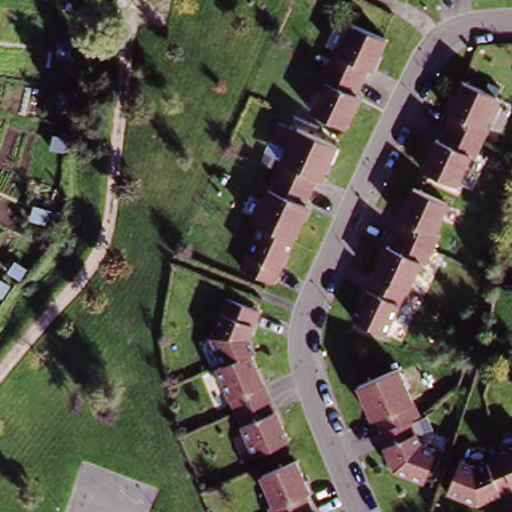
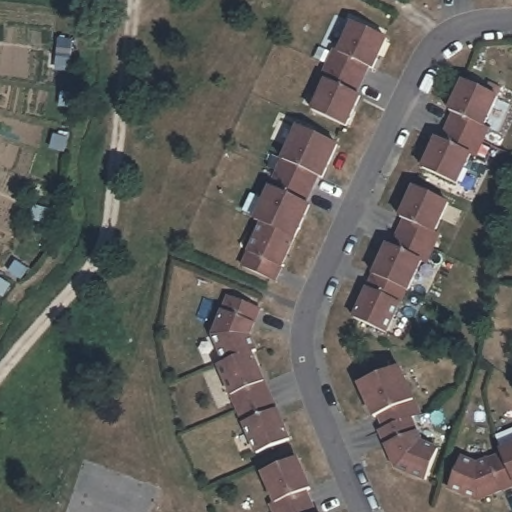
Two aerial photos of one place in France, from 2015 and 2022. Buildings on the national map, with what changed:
unchanged [(340,52),(355,22),(387,37),(374,67),(370,65),(357,92),(362,94),(348,125),(315,110),(328,80),(324,77),(336,50),(340,52)]
unchanged [(447,115),(461,82),(494,98),(480,130),(485,132),(472,159),(467,156),(455,186),(420,171),(433,141),(439,144),(451,116),(447,115)]
unchanged [(253,230),(295,135),(335,153),(320,186),(315,184),(302,211),(307,214),(272,290),(242,275),(260,233),(253,230)]
unchanged [(445,206),(432,235),(436,237),(423,266),(418,263),(405,293),(403,292),(383,335),(352,320),(385,248),(390,250),(402,223),(397,220),(411,190),(445,206)]
unchanged [(259,313),(249,336),(257,352),(252,355),(288,440),(255,454),(219,367),(225,365),(212,336),(228,300),(259,313)]
unchanged [(372,420),(359,385),(398,370),(417,417),(408,421),(418,447),(433,453),(422,482),(394,472),(378,433),(383,431),(377,417),(372,420)]
unchanged [(451,492),(463,462),(480,470),(504,460),(502,455),(512,451),(512,491),(482,504),(451,492)]
unchanged [(273,503),(261,475),(296,460),(308,489),(303,491),(312,512),(271,512),(268,505),(273,503)]

